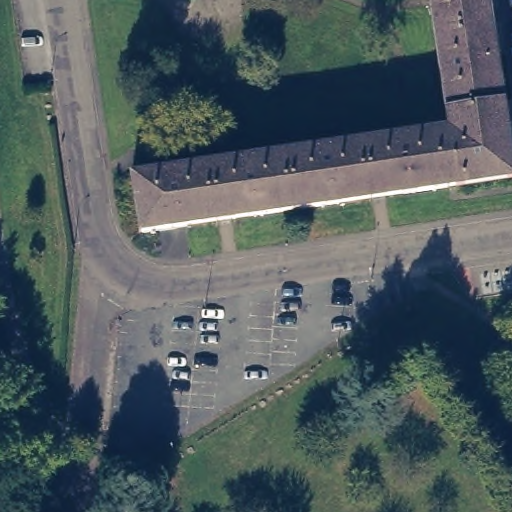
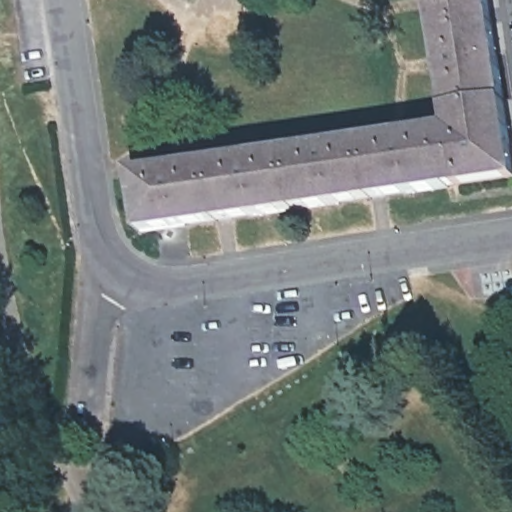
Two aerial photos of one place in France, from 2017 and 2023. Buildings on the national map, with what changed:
unchanged [(512,173),(142,229),(132,170),(449,123),(431,0),(490,0),(512,146),(512,173)]

